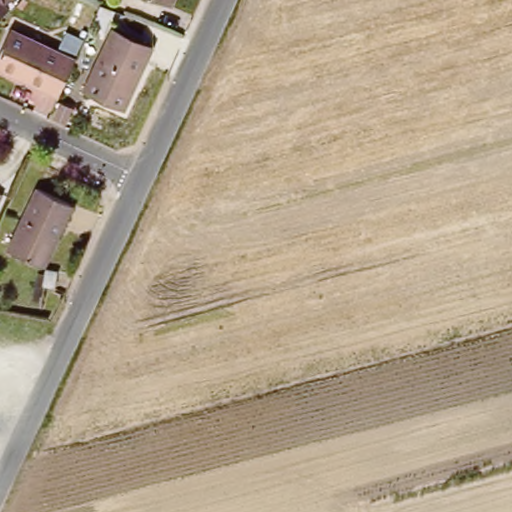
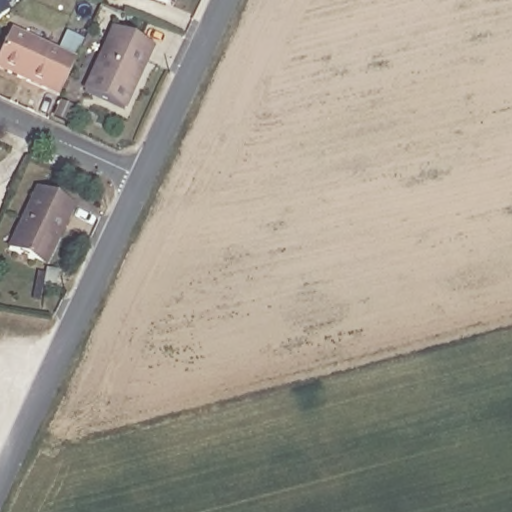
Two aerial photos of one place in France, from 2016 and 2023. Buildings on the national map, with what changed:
unchanged [(3,0),(7,10),(0,17),(0,0),(3,0)]
unchanged [(167,0),(172,0),(171,2),(167,0)]
unchanged [(0,67),(0,52),(12,26),(78,56),(62,94),(0,67)]
unchanged [(113,28),(153,46),(125,109),(83,91),(113,28)]
unchanged [(12,249),(40,187),(76,204),(62,234),(52,258),(50,265),(45,264),(12,249)]

